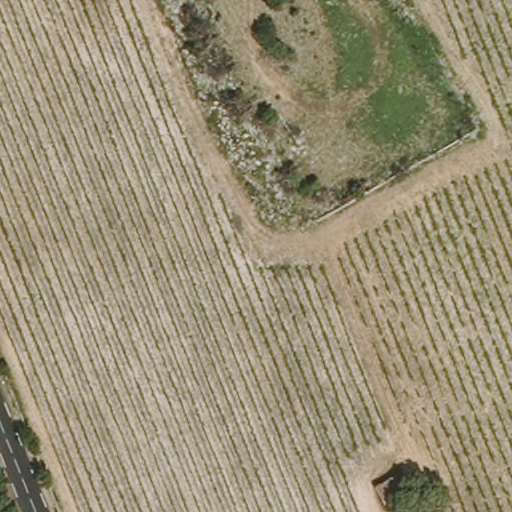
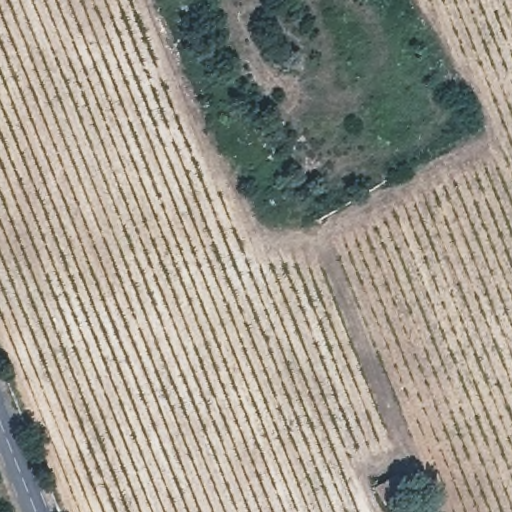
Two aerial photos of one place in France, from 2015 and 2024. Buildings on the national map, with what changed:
unchanged [(402,500),(379,510),(372,484),(394,475),(402,500)]

